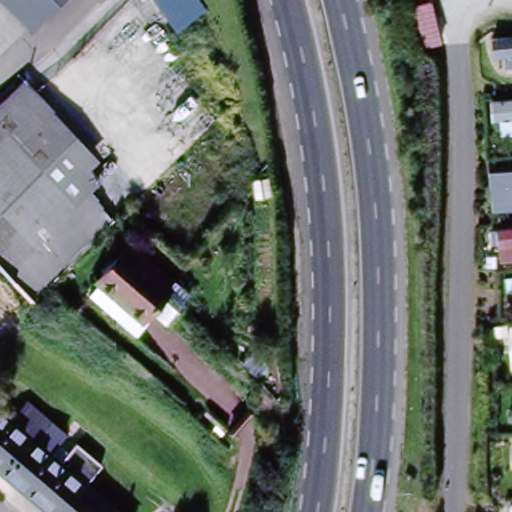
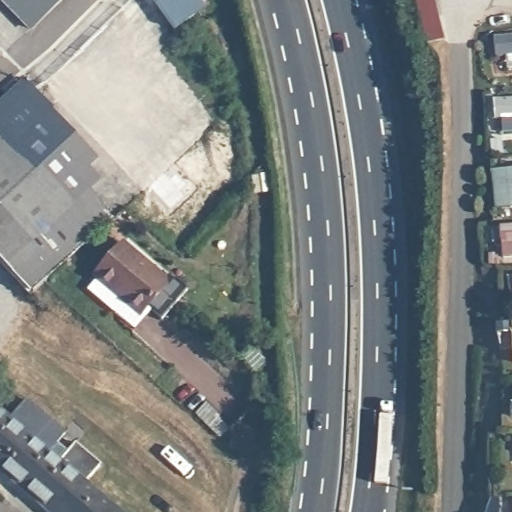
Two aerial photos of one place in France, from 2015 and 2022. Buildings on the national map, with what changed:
unchanged [(2,0),(56,0),(28,26),(2,0)]
unchanged [(176,30),(155,0),(199,0),(205,10),(176,30)]
unchanged [(22,76),(96,156),(87,164),(97,175),(112,217),(100,230),(15,139),(40,115),(12,85),(22,76)]
unchanged [(34,294),(0,259),(0,96),(12,85),(40,115),(15,139),(100,230),(34,294)]
unchanged [(512,170),(512,213),(490,216),(487,172),(512,170)]
unchanged [(135,327),(115,310),(125,298),(96,275),(124,241),(170,279),(152,301),(155,304),(135,327)]
unchanged [(0,481),(0,419),(7,425),(22,406),(61,439),(54,449),(64,457),(70,448),(97,471),(82,488),(110,512),(36,512),(0,481)]

